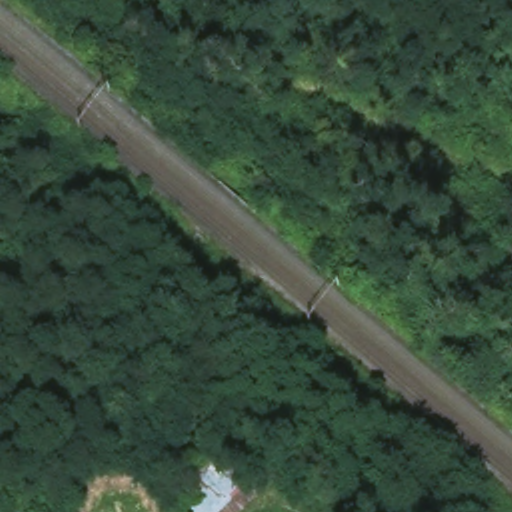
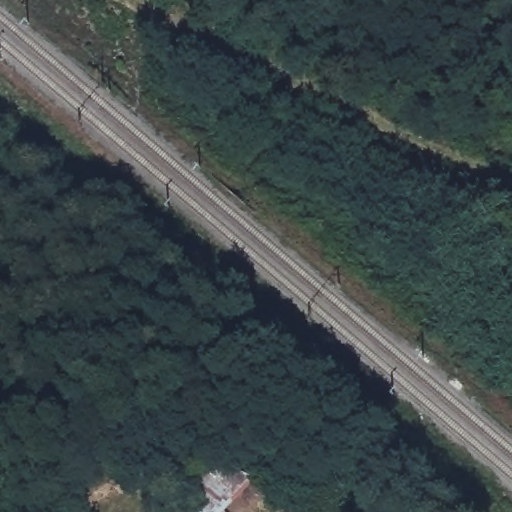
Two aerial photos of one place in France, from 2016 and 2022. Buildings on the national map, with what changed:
unchanged [(179,474),(217,447),(267,493),(246,512),(189,512),(179,474)]

